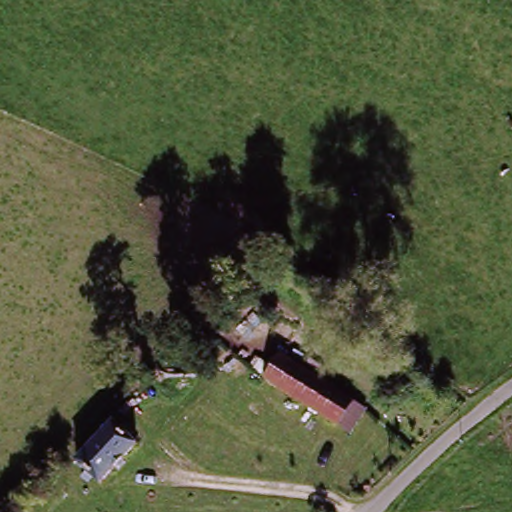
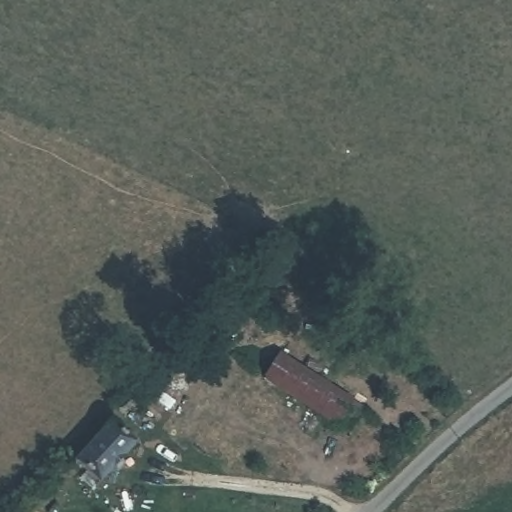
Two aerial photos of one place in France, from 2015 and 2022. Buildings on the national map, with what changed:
unchanged [(354,404),(338,430),(233,365),(250,342),(354,404)]
unchanged [(136,450),(103,487),(77,465),(112,427),(136,450)]

